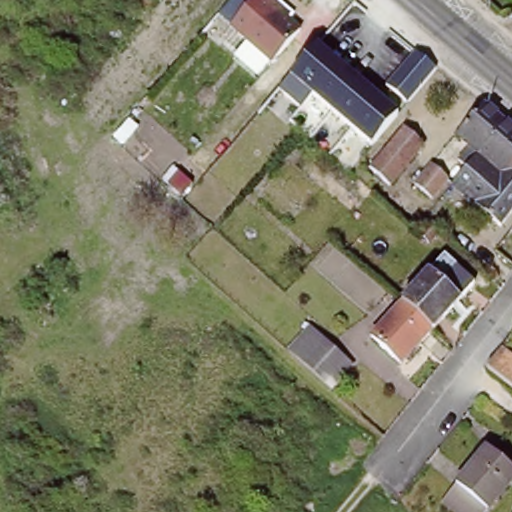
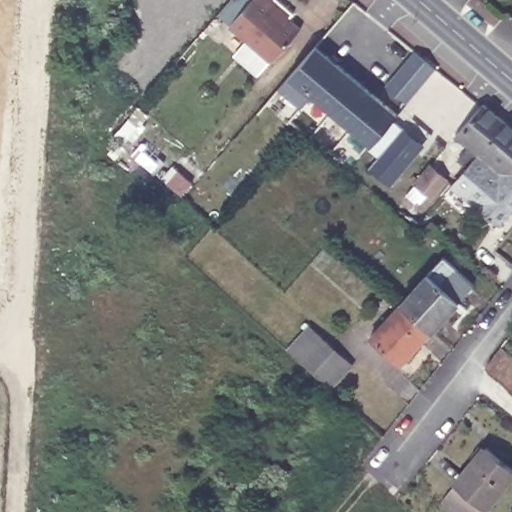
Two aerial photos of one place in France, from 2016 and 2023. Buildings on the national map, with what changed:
unchanged [(275,63),(235,25),(257,0),(276,0),(280,4),(277,7),(303,32),(275,63)]
unchanged [(372,150),(310,94),(300,107),(277,87),(315,44),(400,114),(372,150)]
unchanged [(436,67),(407,101),(385,84),(414,49),(436,67)]
unchanged [(508,175),(482,153),(461,135),(482,111),(485,107),(488,105),(512,125),(512,171),(508,175)]
unchanged [(394,187),(390,183),(375,169),(409,129),(430,148),(405,175),(394,187)]
unchanged [(506,225),(457,182),(482,153),(508,175),(512,171),(512,218),(506,225)]
unchanged [(436,196),(422,184),(437,166),(453,179),(436,196)]
unchanged [(450,255),(479,282),(450,313),(422,286),(450,255)]
unchanged [(450,313),(420,344),(392,316),(422,286),(450,313)]
unchanged [(420,344),(402,363),(373,337),(392,316),(420,344)]
unchanged [(312,323),(347,356),(325,380),(290,348),(312,323)]
unchanged [(493,373),(491,371),(505,352),(506,352),(512,355),(512,386),(493,373)]
unchanged [(452,496),(492,445),(512,460),(512,483),(488,512),(460,512),(447,501),(452,496)]

